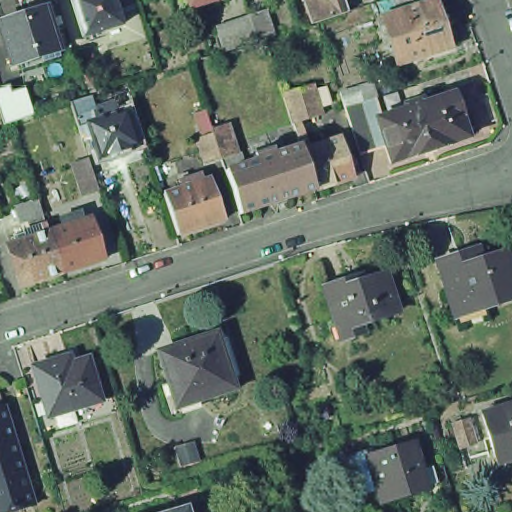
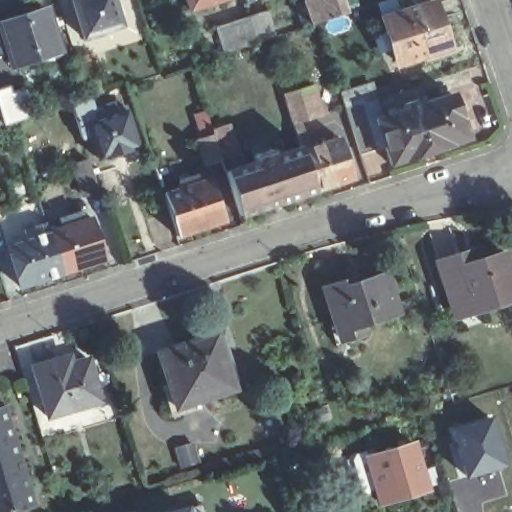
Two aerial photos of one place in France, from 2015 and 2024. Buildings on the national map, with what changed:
unchanged [(113,0),(121,26),(84,38),(83,38),(72,0),(113,0)]
unchanged [(220,0),(189,10),(186,0),(220,0)]
unchanged [(315,0),(376,0),(376,3),(348,12),(311,25),(304,4),(315,0)]
unchanged [(399,64),(384,19),(399,14),(394,0),(429,0),(430,4),(432,3),(447,48),(399,64)]
unchanged [(59,51),(13,66),(0,27),(0,23),(45,9),(59,51)]
unchanged [(249,16),(266,11),(275,36),(258,43),(224,54),(216,28),(249,16)]
unchanged [(299,21),(301,27),(296,29),(294,24),(299,21)]
unchanged [(89,56),(91,55),(99,79),(97,80),(86,83),(79,59),(89,56)]
unchanged [(204,166),(196,141),(203,139),(201,133),(196,116),(205,113),(210,130),(211,131),(226,126),(236,156),(239,168),(255,163),(253,156),(271,150),(274,156),(300,148),(285,103),(276,73),(304,64),(314,93),(302,97),(309,120),(299,122),(308,149),(339,139),(353,179),(314,190),(239,216),(225,173),(221,161),(204,166)]
unchanged [(346,109),(341,94),(371,84),(376,99),(383,118),(404,111),(403,106),(422,99),(424,104),(452,95),(459,118),(461,118),(468,139),(452,144),(453,146),(406,161),(405,160),(391,165),(384,146),(376,150),(361,155),(351,126),(346,109)]
unchanged [(0,96),(24,88),(33,116),(13,123),(4,126),(3,121),(0,113),(0,96)]
unchanged [(137,147),(99,159),(91,135),(81,139),(70,104),(89,98),(93,111),(104,107),(105,106),(106,112),(113,110),(115,116),(125,113),(137,147)]
unchanged [(83,196),(73,166),(88,161),(98,191),(83,196)]
unchanged [(177,236),(163,196),(163,195),(181,190),(178,182),(180,182),(178,178),(186,175),(188,179),(189,179),(191,186),(210,180),(224,221),(177,236)]
unchanged [(65,227),(63,221),(70,219),(73,224),(91,218),(104,260),(63,274),(49,233),(49,232),(65,227)]
unchanged [(25,240),(23,232),(46,224),(49,232),(49,233),(63,274),(20,287),(6,246),(25,240)]
unchanged [(476,250),(480,261),(504,253),(512,275),(512,298),(483,308),(454,318),(452,313),(436,263),(458,256),(476,250)]
unchanged [(355,279),(356,284),(389,273),(402,312),(356,327),(355,322),(341,326),(328,287),(355,279)]
unchanged [(239,389),(181,408),(163,353),(221,334),(239,389)]
unchanged [(74,356),(76,364),(93,358),(106,401),(59,415),(53,417),(48,402),(38,367),(63,359),(74,356)]
unchanged [(13,439),(0,443),(0,396),(3,406),(13,439)]
unchanged [(512,406),(512,458),(497,463),(482,415),(512,406)]
unchanged [(468,419),(476,444),(459,448),(452,424),(468,419)]
unchanged [(23,473),(0,480),(0,443),(13,439),(23,473)]
unchanged [(366,457),(413,444),(426,489),(387,500),(384,491),(378,493),(366,457)]
unchanged [(193,445),(198,463),(181,468),(176,450),(193,445)]
unchanged [(33,506),(14,512),(0,512),(0,480),(23,473),(33,506)]
unchanged [(341,509),(342,512),(329,512),(341,509)]
unchanged [(191,510),(191,512),(183,512),(191,510)]

